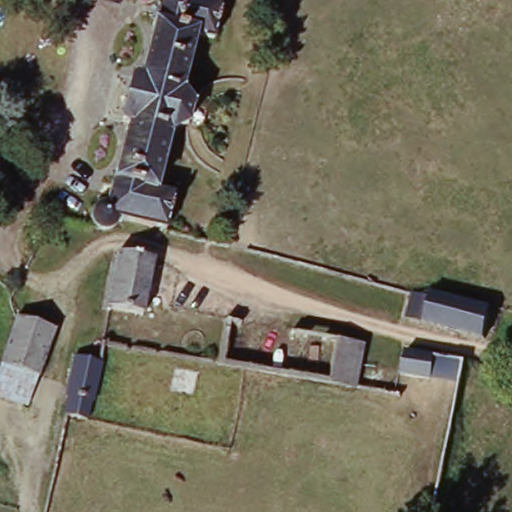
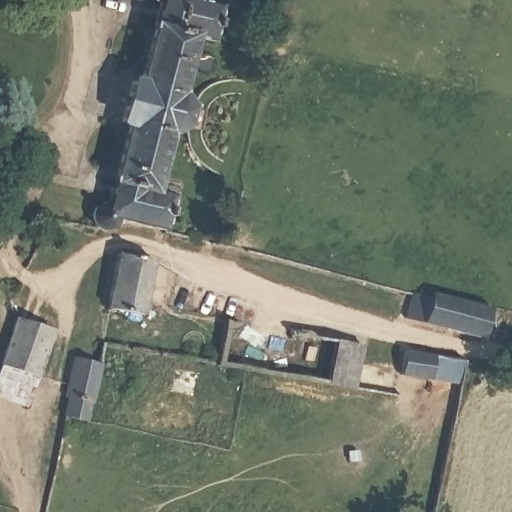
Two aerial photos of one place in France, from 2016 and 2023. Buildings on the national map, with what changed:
unchanged [(226,6),(216,45),(196,42),(187,86),(200,95),(191,133),(172,134),(162,179),(181,183),(170,225),(117,211),(116,223),(92,218),(99,190),(109,191),(124,121),(119,119),(128,84),(133,85),(154,3),(149,0),(190,0),(219,4),(226,6)]
unchanged [(154,266),(142,321),(104,311),(116,259),(154,266)]
unchanged [(500,346),(417,327),(427,287),(510,310),(500,346)]
unchanged [(7,345),(15,314),(56,327),(44,354),(7,345)]
unchanged [(366,343),(356,389),(328,383),(336,339),(366,343)]
unchanged [(29,411),(0,401),(0,369),(7,345),(44,354),(29,411)]
unchanged [(409,353),(437,357),(430,387),(401,379),(409,353)]
unchanged [(74,361),(102,367),(89,426),(60,420),(74,361)]

